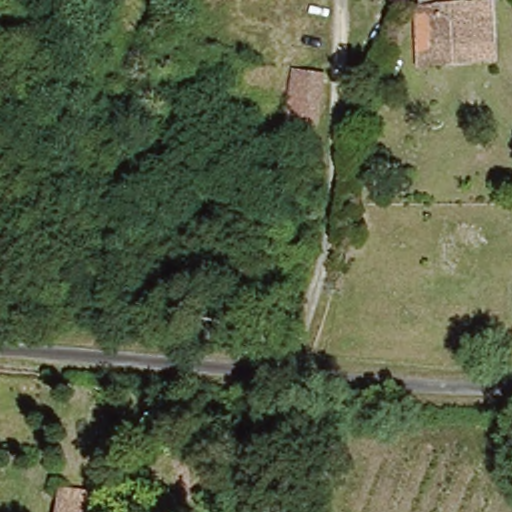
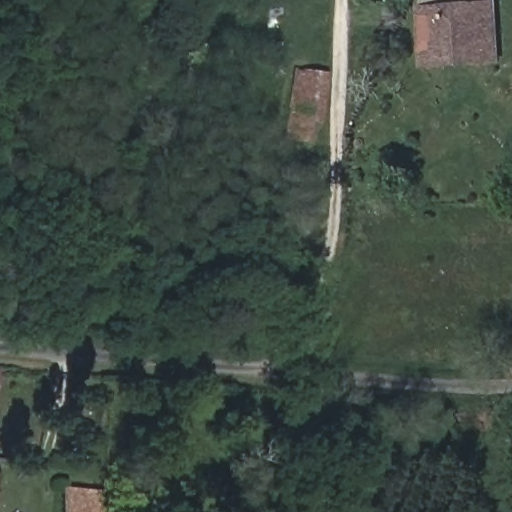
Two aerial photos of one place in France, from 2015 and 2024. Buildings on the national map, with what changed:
unchanged [(420,60),(417,6),(420,6),(494,2),(493,57),(420,60)]
unchanged [(328,75),(318,125),(313,124),(310,140),(284,134),(296,69),(328,75)]
unchanged [(92,482),(90,512),(54,512),(57,480),(92,482)]

